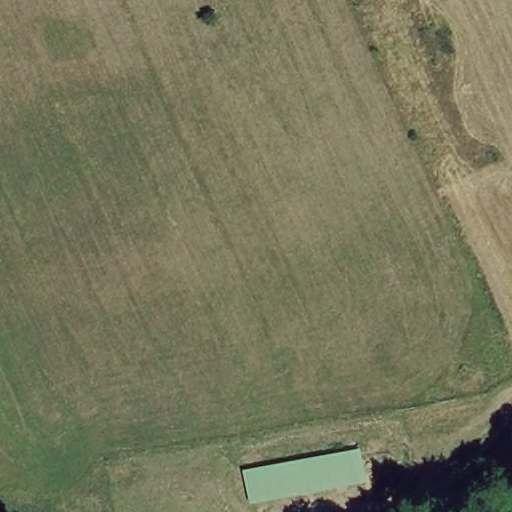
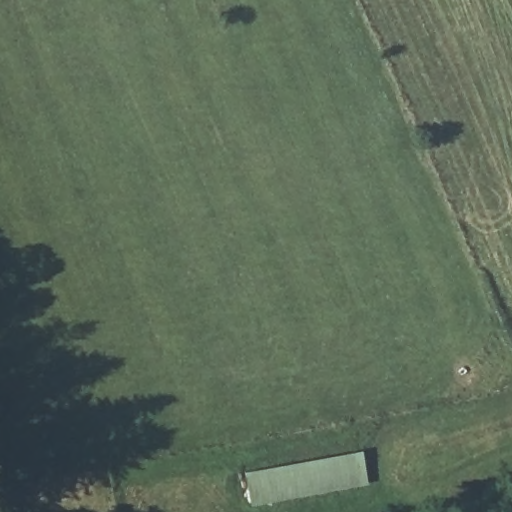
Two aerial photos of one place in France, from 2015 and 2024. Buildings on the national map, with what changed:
unchanged [(239,473),(358,448),(364,485),(248,507),(239,473)]

